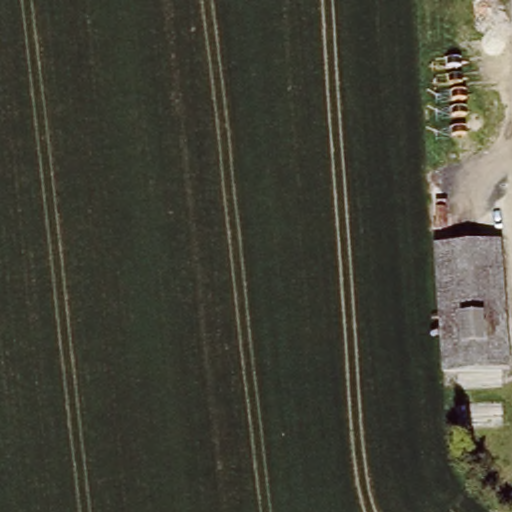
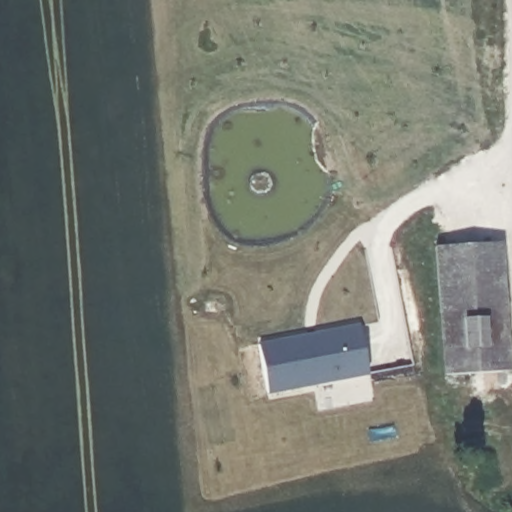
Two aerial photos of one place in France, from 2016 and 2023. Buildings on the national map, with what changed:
unchanged [(497,244),(507,366),(446,372),(435,249),(497,244)]
new [(356,323),(366,371),(264,391),(256,343),(356,323)]

